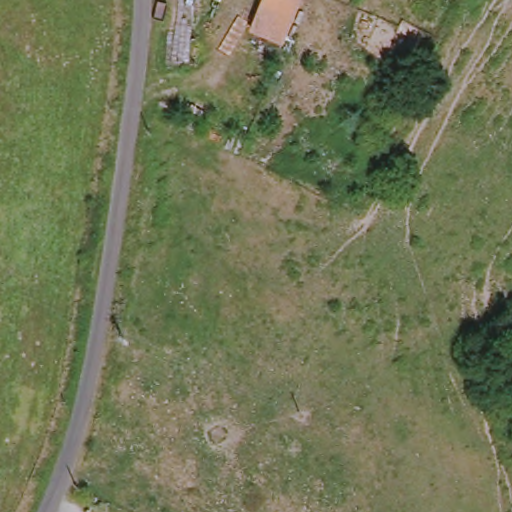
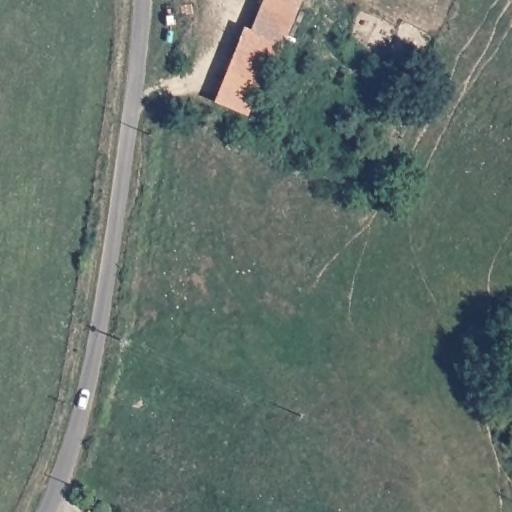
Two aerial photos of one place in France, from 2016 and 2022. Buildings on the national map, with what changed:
unchanged [(304,0),(286,49),(252,35),(266,0),(304,0)]
new [(215,103),(246,26),(253,31),(252,35),(282,47),(250,116),(215,103)]

